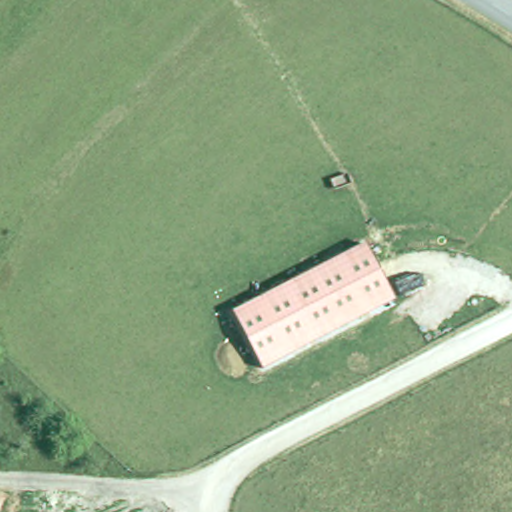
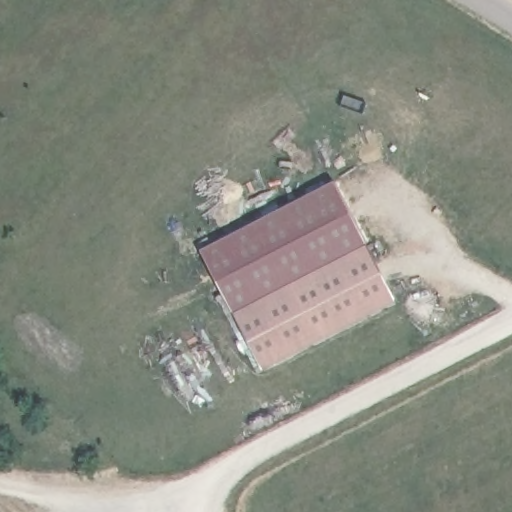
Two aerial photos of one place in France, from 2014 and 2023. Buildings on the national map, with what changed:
new [(233,312),(201,249),(334,179),(368,242),(233,312)]
unchanged [(368,242),(398,299),(264,369),(233,312),(368,242)]

